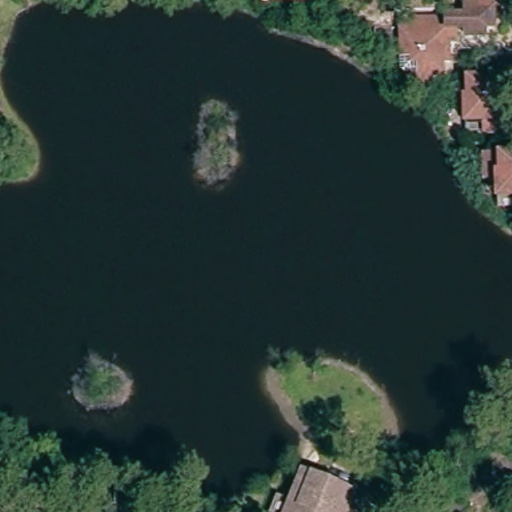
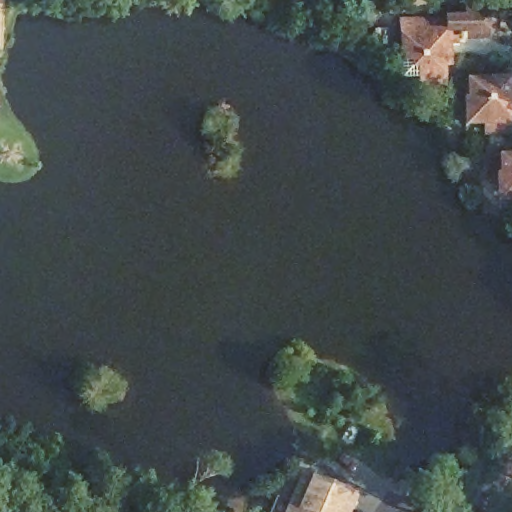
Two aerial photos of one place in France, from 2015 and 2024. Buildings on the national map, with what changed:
unchanged [(406,62),(406,39),(411,39),(411,27),(448,27),(460,27),(460,14),(476,14),(476,19),(486,18),(486,39),(476,39),(476,44),(461,45),(460,35),(448,35),(448,47),(441,47),(442,87),(423,87),(422,77),(407,77),(406,62)]
unchanged [(504,89),(505,130),(483,131),(483,116),(468,117),(467,102),(467,90),(504,89)]
unchanged [(491,182),(490,162),(512,162),(512,195),(506,196),(506,181),(491,182)]
unchanged [(281,512),(297,471),(358,496),(351,512),(281,512)]

